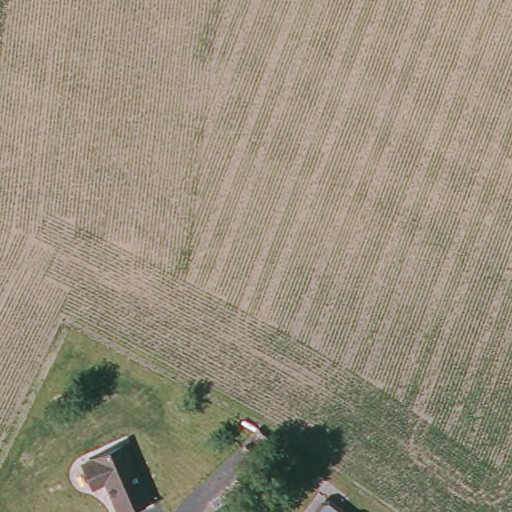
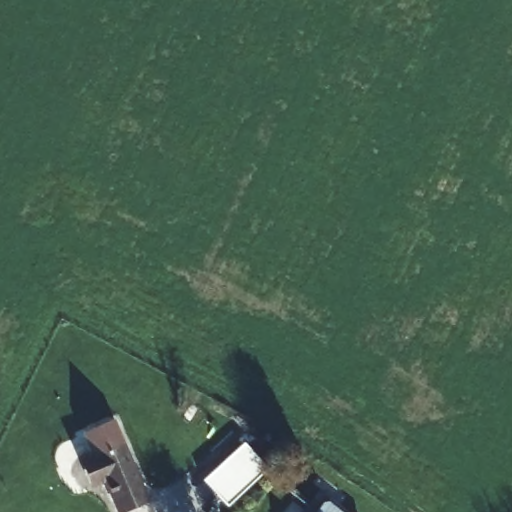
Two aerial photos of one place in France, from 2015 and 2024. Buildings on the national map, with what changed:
new [(224,505),(201,478),(243,442),(266,469),(224,505)]
unchanged [(151,501),(128,512),(126,512),(111,478),(99,482),(89,458),(128,443),(151,501)]
unchanged [(319,511),(320,512),(317,512),(319,511)]

